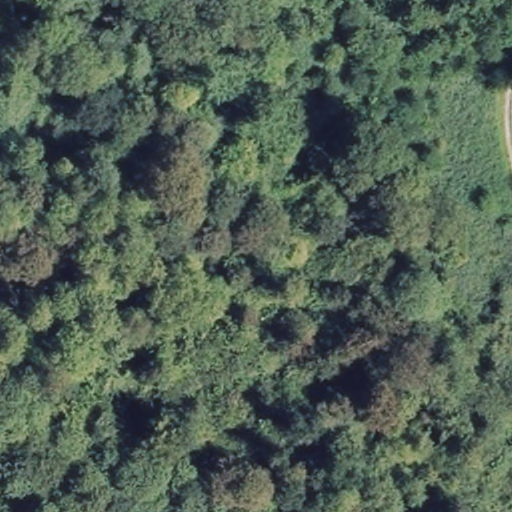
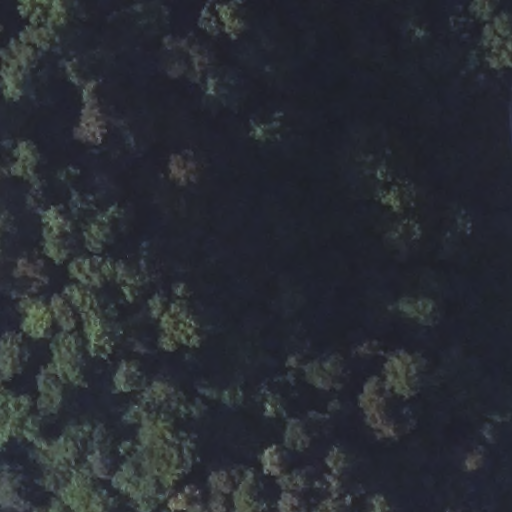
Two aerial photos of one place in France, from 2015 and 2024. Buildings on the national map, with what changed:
unchanged [(115,316),(79,302),(87,273),(126,287),(115,316)]

